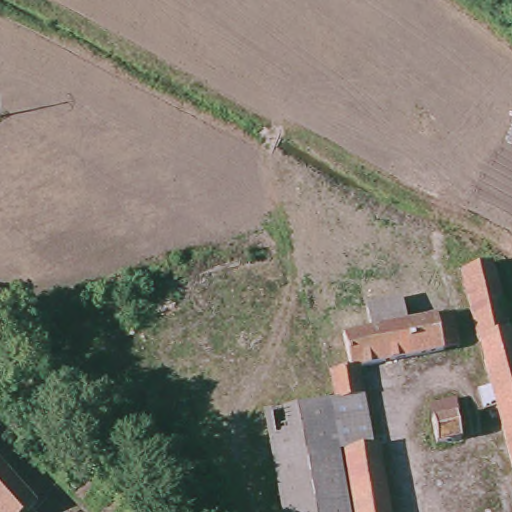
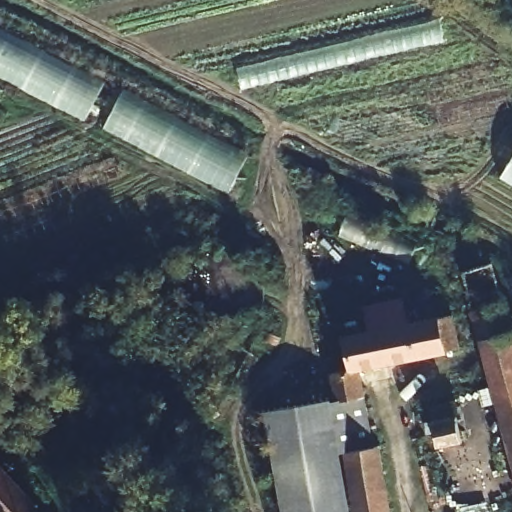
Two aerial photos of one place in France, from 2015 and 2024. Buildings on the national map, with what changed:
new [(239,69),(440,22),(444,43),(242,88),(239,69)]
new [(0,76),(0,25),(105,80),(85,119),(0,76)]
new [(229,195),(104,129),(125,86),(250,153),(229,195)]
new [(0,88),(3,90),(0,96),(0,88)]
new [(499,182),(512,162),(512,190),(499,182)]
unchanged [(480,337),(476,339),(470,307),(464,282),(460,268),(478,263),(494,259),(511,328),(512,328),(512,455),(480,337)]
unchanged [(359,370),(364,397),(339,401),(334,373),(353,369),(347,336),(373,332),(369,306),(405,299),(410,325),(451,316),(457,350),(359,370)]
new [(330,400),(339,401),(364,397),(374,446),(379,445),(390,512),(351,512),(330,400)]
unchanged [(268,410),(330,400),(351,512),(286,512),(268,410)]
unchanged [(436,446),(432,418),(457,414),(462,442),(436,446)]
demolished [(347,452),(380,448),(391,512),(358,512),(347,452)]
unchanged [(84,466),(85,455),(100,458),(97,469),(84,466)]
unchanged [(0,510),(0,457),(7,465),(52,512),(1,512),(0,510)]

